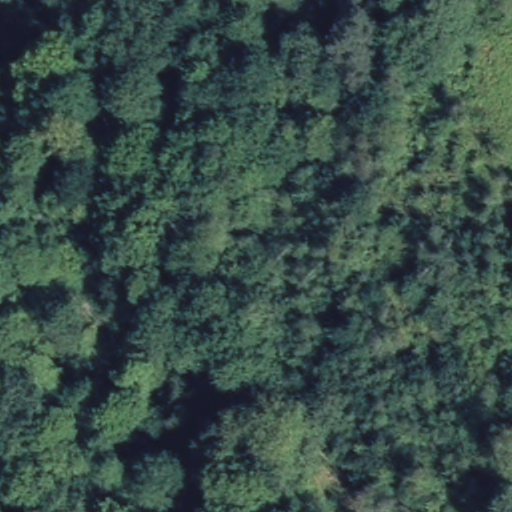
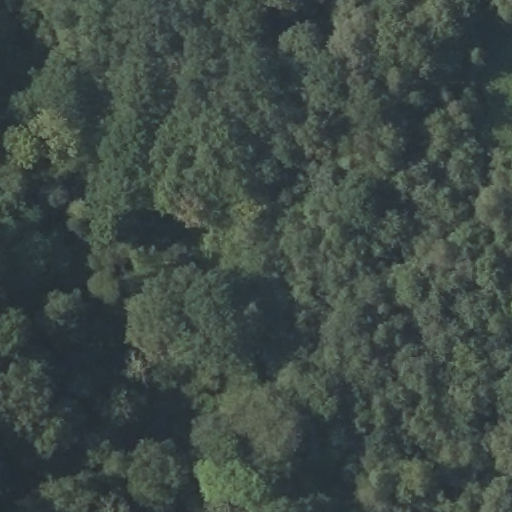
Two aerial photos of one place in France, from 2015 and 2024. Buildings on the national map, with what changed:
[]

